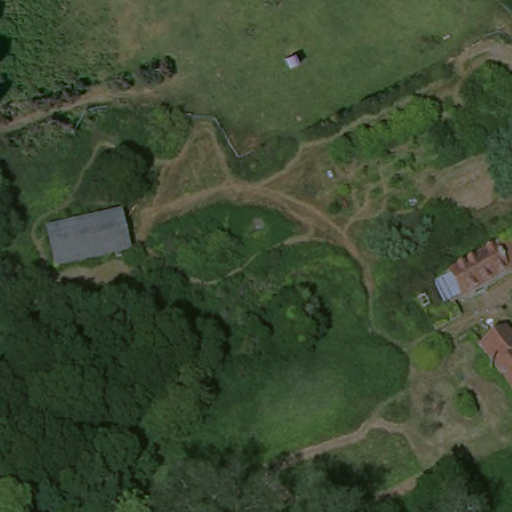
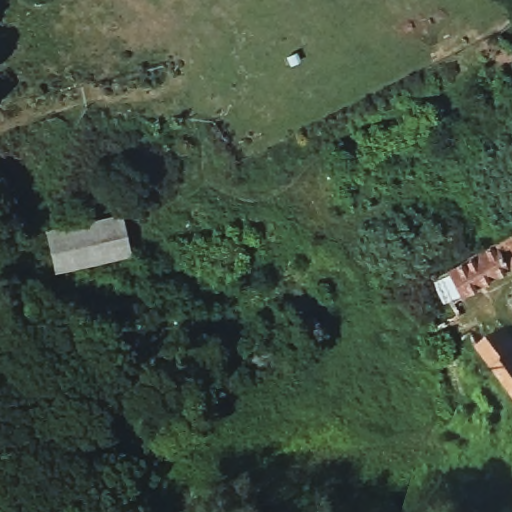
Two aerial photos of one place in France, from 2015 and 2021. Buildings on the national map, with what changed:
unchanged [(129,254),(58,278),(45,234),(118,213),(129,254)]
unchanged [(512,270),(472,296),(454,266),(483,248),(498,239),(512,261),(512,270)]
unchanged [(512,391),(479,341),(499,326),(512,345),(512,391)]

